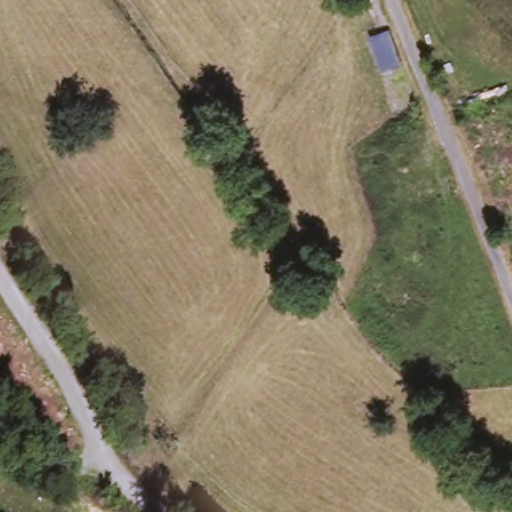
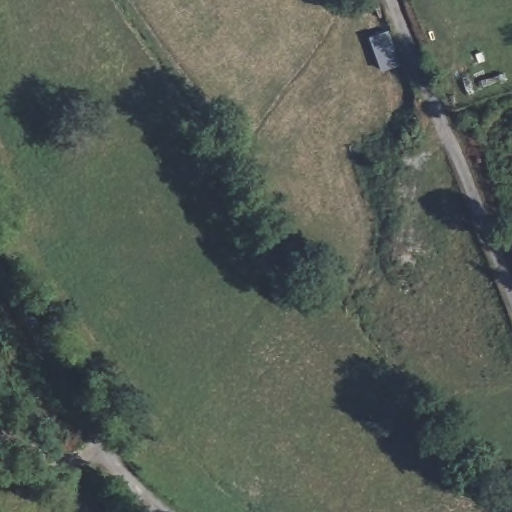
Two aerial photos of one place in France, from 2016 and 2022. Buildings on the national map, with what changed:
unchanged [(383,77),(377,56),(371,40),(390,34),(403,71),(383,77)]

